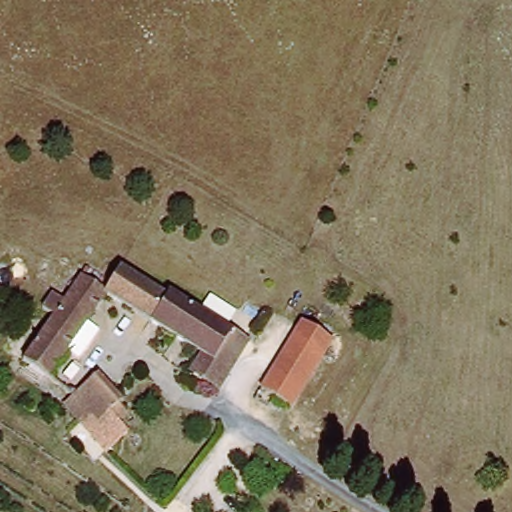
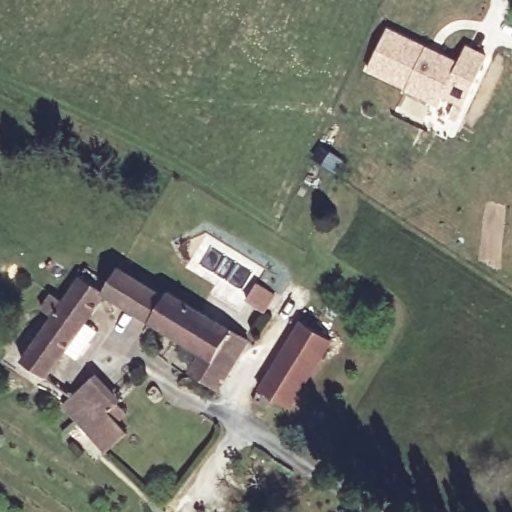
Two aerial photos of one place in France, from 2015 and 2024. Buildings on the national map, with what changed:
new [(459,61),(468,44),(487,54),(462,108),(443,99),(439,107),(368,72),(389,27),(459,61)]
unchanged [(109,291),(54,376),(11,348),(19,337),(36,345),(89,266),(111,280),(119,267),(168,297),(154,320),(109,291)]
unchanged [(219,359),(212,355),(154,320),(168,297),(173,291),(236,331),(219,359)]
unchanged [(294,405),(277,394),(268,409),(256,401),(306,319),(336,339),(294,405)]
unchanged [(201,374),(212,355),(219,359),(236,331),(253,340),(224,389),(201,374)]
unchanged [(83,381),(88,388),(101,381),(139,424),(134,429),(141,440),(118,460),(68,402),(83,381)]

